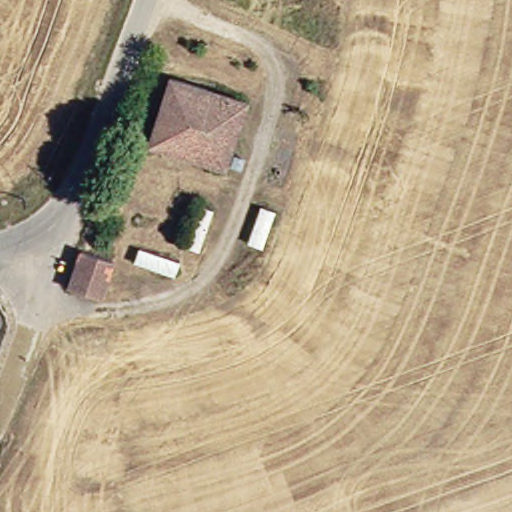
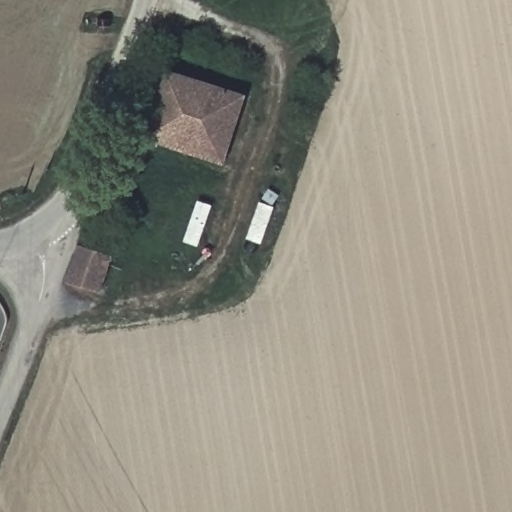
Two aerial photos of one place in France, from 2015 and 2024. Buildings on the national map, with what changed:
unchanged [(250,91),(232,160),(152,136),(171,70),(197,79),(250,91)]
unchanged [(79,248),(112,258),(102,294),(67,285),(79,248)]

